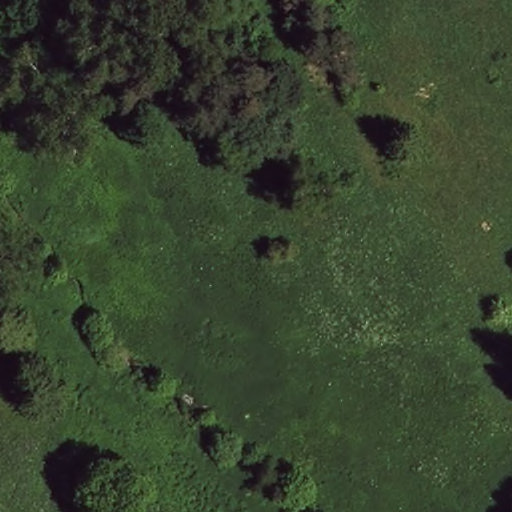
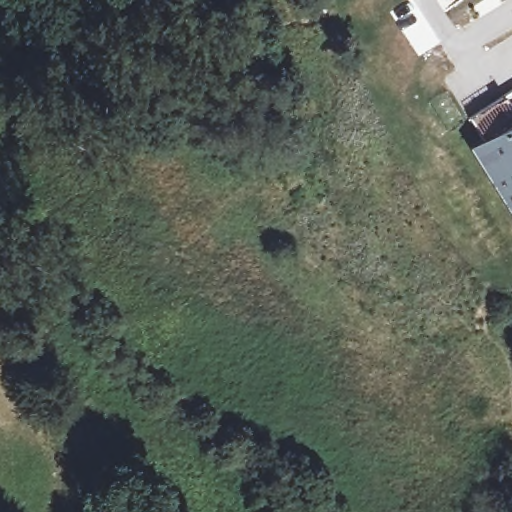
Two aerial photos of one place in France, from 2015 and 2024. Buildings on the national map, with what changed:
new [(464,145),(480,136),(468,117),(501,97),(512,90),(512,221),(464,145)]

